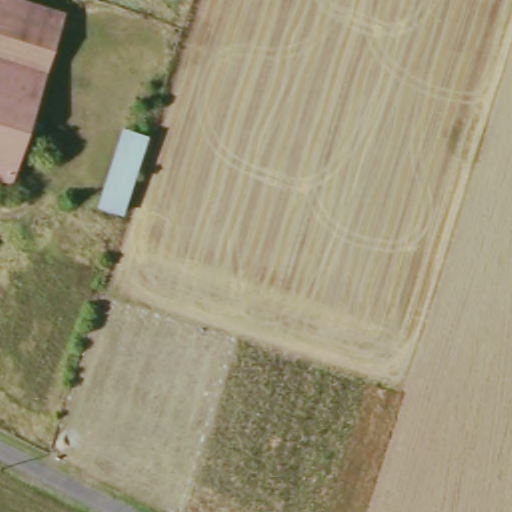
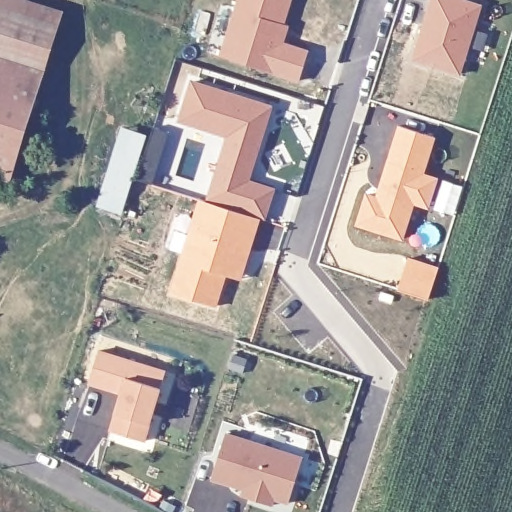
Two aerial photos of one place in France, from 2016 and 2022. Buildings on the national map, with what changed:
unchanged [(0,180),(0,0),(31,0),(73,12),(18,184),(0,180)]
new [(240,0),(293,0),(284,31),(289,32),(286,41),(312,49),(303,78),(238,58),(223,54),(233,25),(240,0)]
new [(433,5),(434,0),(477,0),(484,2),(463,71),(417,57),(426,27),(433,5)]
new [(424,174),(437,179),(427,207),(413,203),(403,240),(357,225),(368,194),(379,198),(399,126),(435,137),(424,174)]
unchanged [(156,137),(133,219),(101,207),(126,129),(156,137)]
new [(226,283),(219,305),(176,292),(198,219),(204,199),(217,202),(263,217),(253,249),(241,287),(226,283)]
new [(102,350),(169,370),(148,441),(114,431),(125,393),(92,383),(102,350)]
new [(231,433),(308,457),(294,503),(279,498),(276,505),(254,499),(256,492),(216,479),(231,433)]

